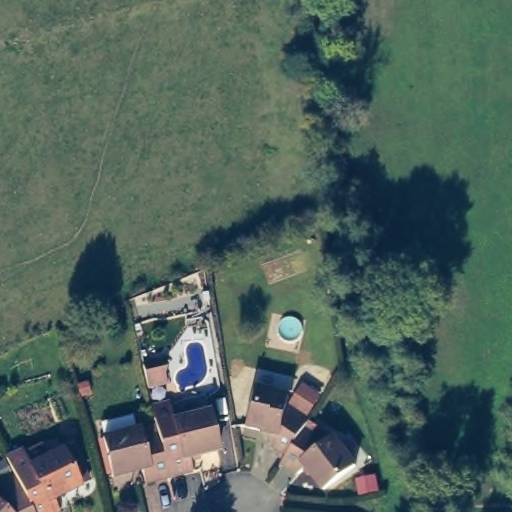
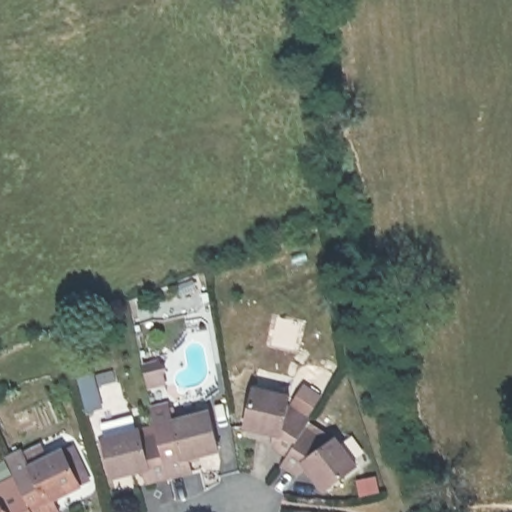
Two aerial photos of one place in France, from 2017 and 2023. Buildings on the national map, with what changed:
unchanged [(309,419),(292,446),(277,438),(280,425),(251,416),(259,379),(295,386),(294,400),(314,410),(309,419)]
unchanged [(175,422),(175,413),(211,405),(222,445),(192,454),(192,466),(171,470),(160,427),(175,422)]
unchanged [(292,446),(309,419),(334,435),(339,430),(360,458),(329,482),(310,458),(302,465),(287,454),(292,446)]
unchanged [(171,470),(148,476),(142,464),(112,470),(105,431),(139,423),(144,431),(160,427),(171,470)]
unchanged [(30,467),(62,450),(73,443),(89,472),(79,477),(82,487),(54,500),(58,512),(33,512),(32,510),(23,492),(18,481),(33,474),(30,467)]
unchanged [(0,499),(4,502),(23,492),(32,510),(33,512),(0,512),(0,499)]

